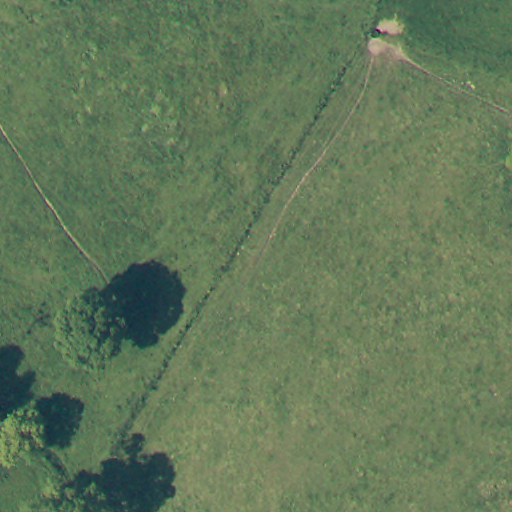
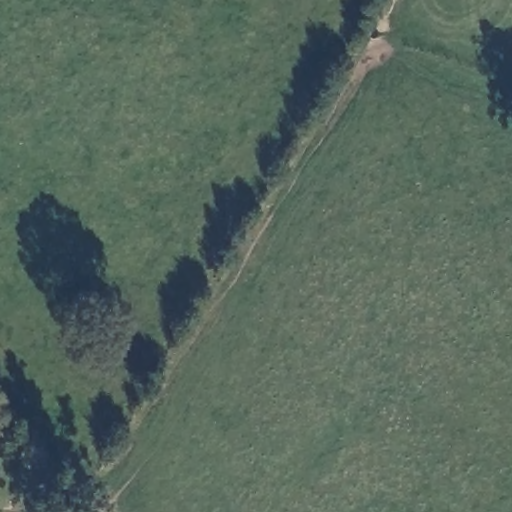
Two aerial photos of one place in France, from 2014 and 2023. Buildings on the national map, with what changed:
[]

